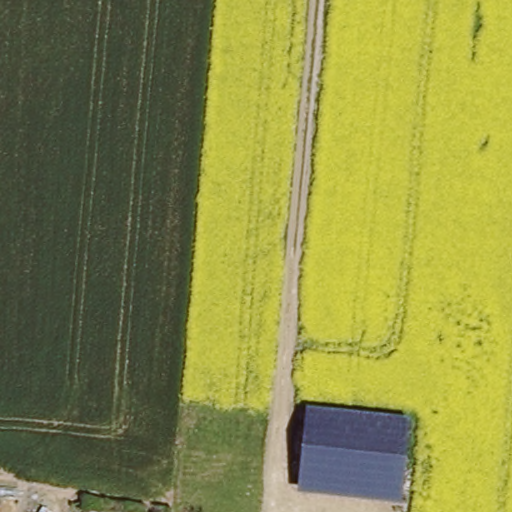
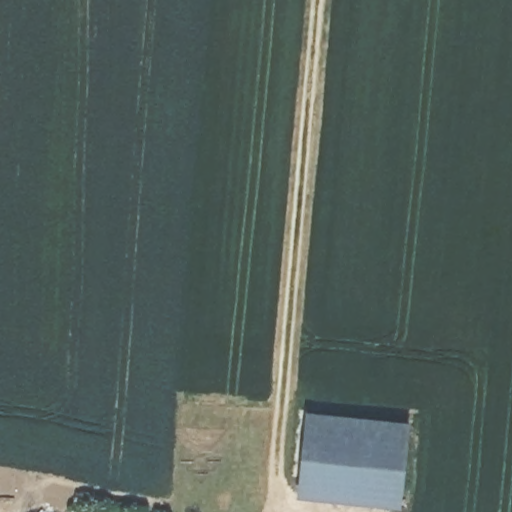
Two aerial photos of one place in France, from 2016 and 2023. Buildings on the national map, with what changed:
unchanged [(295,490),(304,407),(406,417),(397,500),(295,490)]

